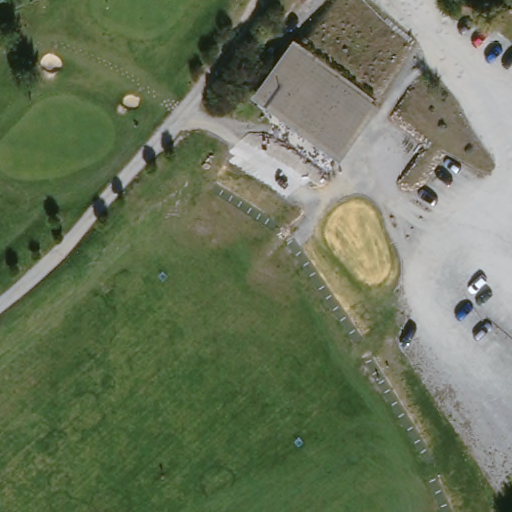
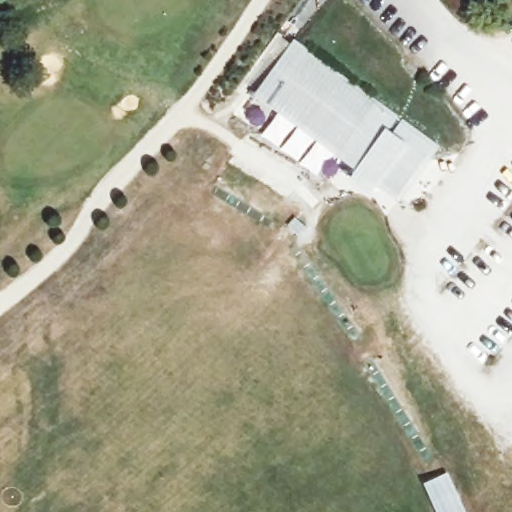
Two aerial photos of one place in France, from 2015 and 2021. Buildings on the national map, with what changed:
unchanged [(252,96),(293,39),(380,106),(342,161),(252,96)]
new [(437,148),(396,201),(373,184),(367,192),(347,177),(353,169),(342,161),(380,106),(437,148)]

